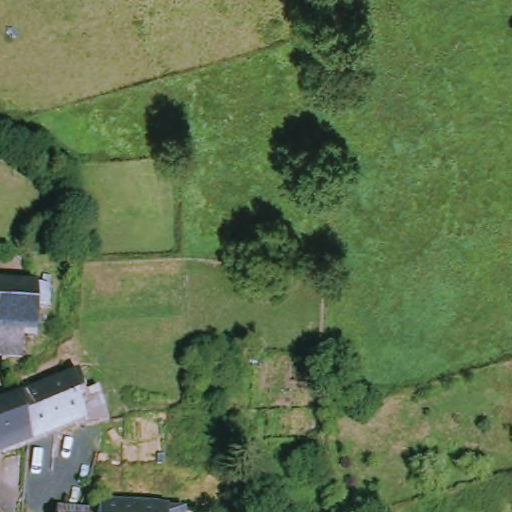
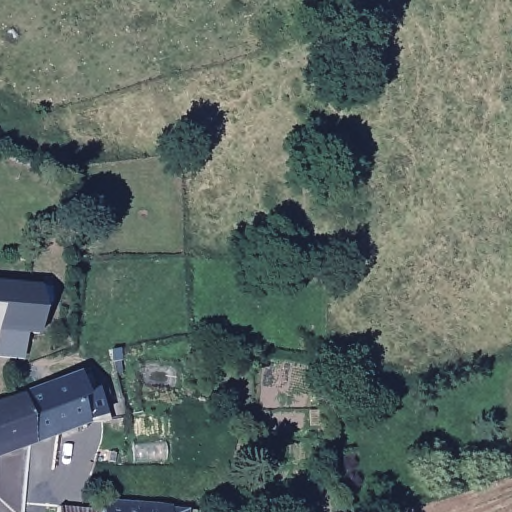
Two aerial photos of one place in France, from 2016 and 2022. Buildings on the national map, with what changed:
unchanged [(47,287),(46,303),(34,302),(34,333),(20,333),(18,356),(0,354),(0,282),(47,287)]
unchanged [(76,372),(79,390),(94,386),(104,420),(84,421),(29,441),(18,393),(76,372)]
unchanged [(29,441),(0,452),(0,400),(18,393),(29,441)]
unchanged [(94,505),(95,496),(196,506),(195,512),(45,512),(46,504),(53,505),(54,502),(77,503),(94,505)]

